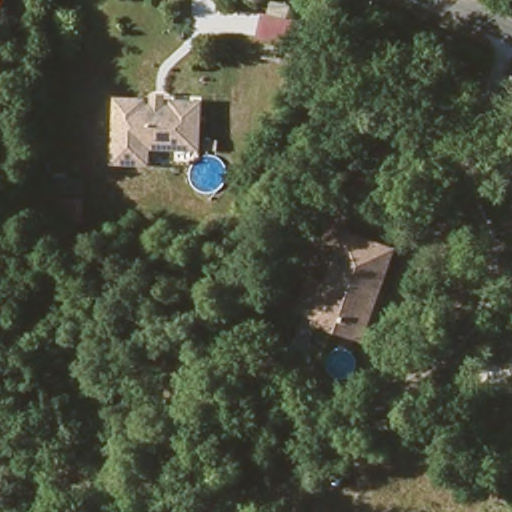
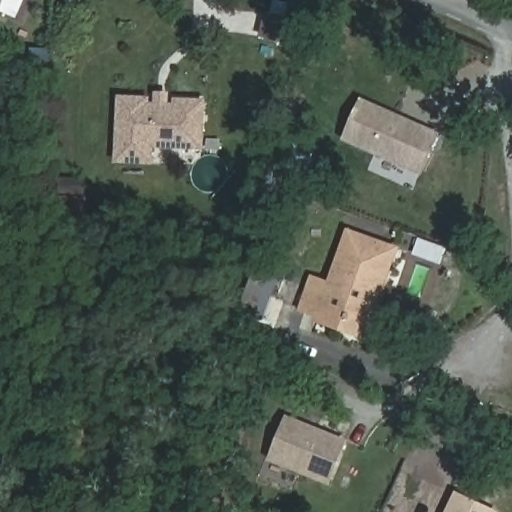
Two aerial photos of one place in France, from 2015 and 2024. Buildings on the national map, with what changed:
unchanged [(0,18),(0,0),(8,0),(1,19),(0,18)]
new [(424,177),(343,141),(361,98),(442,134),(424,177)]
unchanged [(206,145),(156,144),(156,161),(123,160),(124,99),(207,100),(206,145)]
unchanged [(379,295),(372,293),(359,328),(321,314),(319,321),(300,314),(311,284),(328,290),(347,238),(393,254),(379,295)]
new [(333,487),(268,462),(287,415),(349,439),(333,487)]
new [(512,460),(512,488),(508,492),(494,478),(512,460)]
new [(456,492),(499,512),(446,512),(456,492)]

